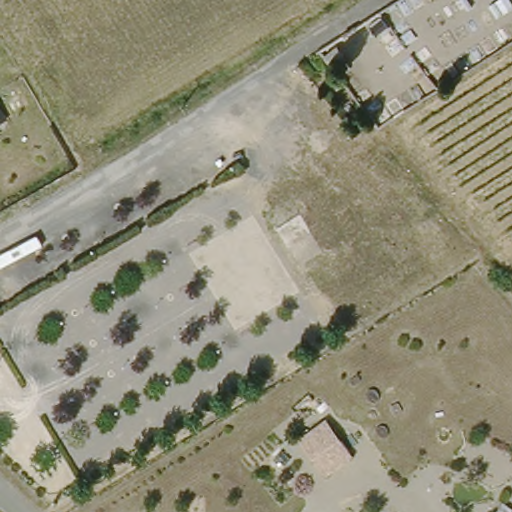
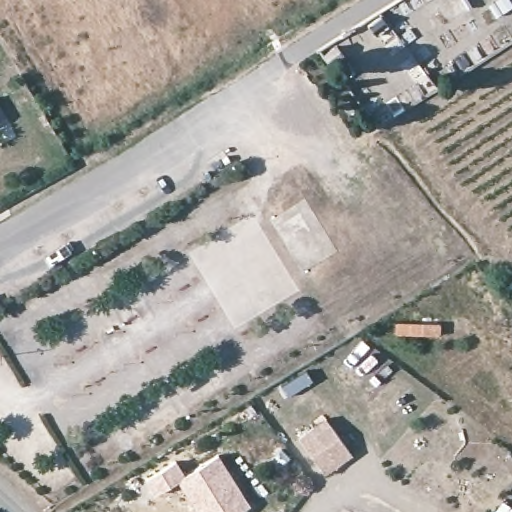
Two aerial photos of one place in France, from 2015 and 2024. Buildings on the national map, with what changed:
unchanged [(324,471),(320,466),(297,433),(312,422),(325,413),(330,419),(347,445),(352,450),(324,471)]
new [(185,475),(219,454),(251,505),(240,512),(197,512),(178,480),(185,475)]

